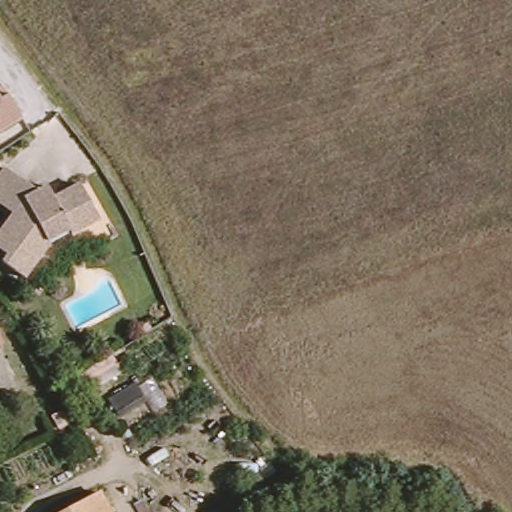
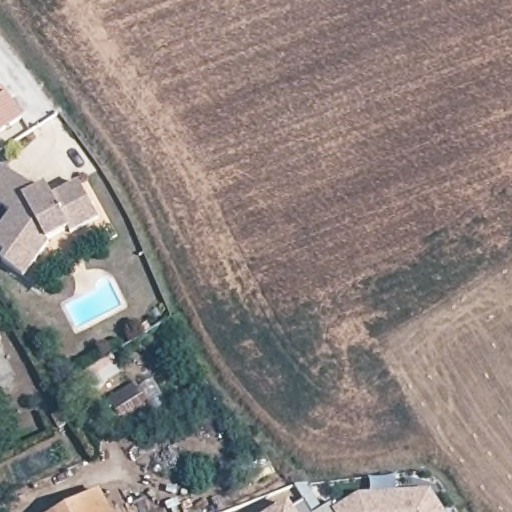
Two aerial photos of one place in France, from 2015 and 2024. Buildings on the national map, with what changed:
unchanged [(24,119),(0,135),(0,107),(0,98),(9,93),(24,119)]
unchanged [(45,187),(54,199),(76,186),(98,220),(76,236),(50,240),(23,280),(0,264),(0,262),(4,257),(0,254),(0,232),(13,216),(0,206),(0,172),(3,167),(38,191),(45,187)]
unchanged [(0,270),(7,282),(0,285),(0,270)]
new [(336,510),(360,495),(430,491),(443,512),(319,512),(333,503),(336,510)]
unchanged [(104,512),(70,512),(97,497),(104,512)]
new [(292,510),(305,502),(311,512),(276,512),(289,505),(292,510)]

